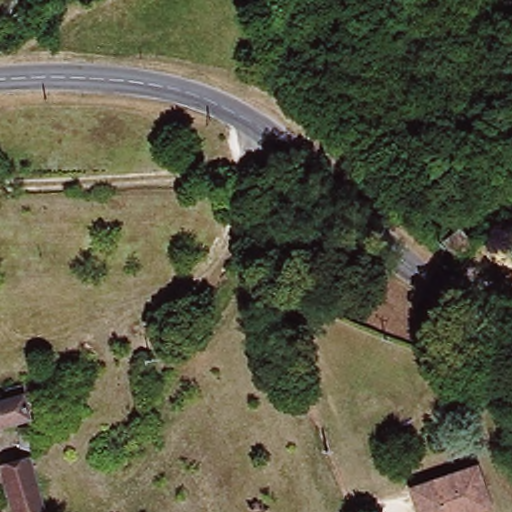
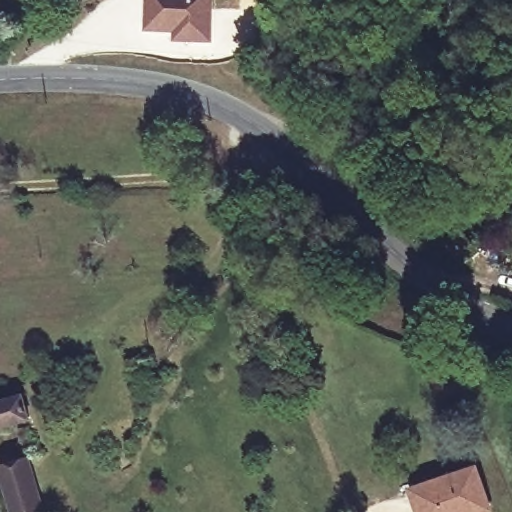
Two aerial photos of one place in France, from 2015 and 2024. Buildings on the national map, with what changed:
new [(175,29),(152,28),(152,0),(218,0),(217,39),(197,39),(180,38),(180,29),(175,29)]
unchanged [(444,240),(461,228),(473,244),(457,257),(444,240)]
unchanged [(147,364),(140,362),(140,355),(148,356),(147,364)]
unchanged [(438,397),(432,382),(457,371),(465,390),(444,398),(438,397)]
unchanged [(34,417),(0,427),(0,402),(27,394),(34,417)]
unchanged [(17,512),(4,463),(27,457),(19,429),(27,427),(35,455),(45,452),(51,473),(40,476),(50,511),(46,512),(17,512)]
unchanged [(477,512),(420,512),(412,488),(477,466),(490,507),(477,512)]

